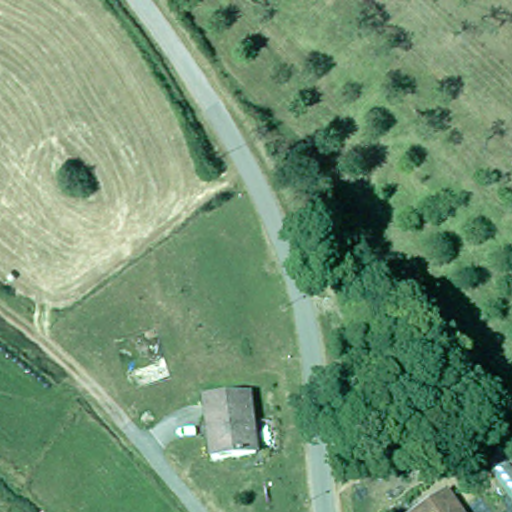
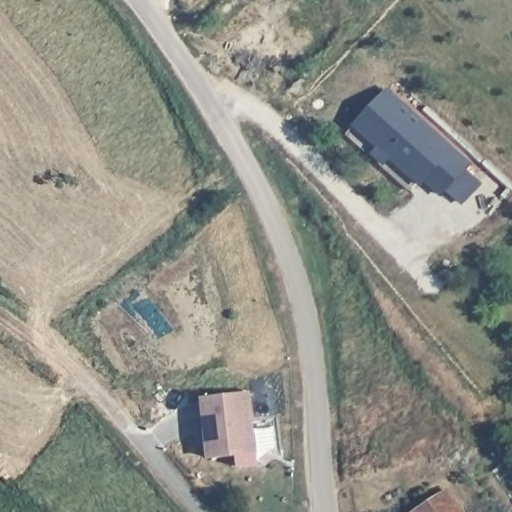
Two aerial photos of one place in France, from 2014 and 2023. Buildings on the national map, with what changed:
new [(463,204),(448,190),(444,196),(427,181),(423,186),(391,159),(386,165),(375,156),(381,150),(370,140),(356,127),(387,92),(401,104),(471,165),(466,170),(480,182),(463,204)]
unchanged [(197,393),(241,384),(255,445),(210,454),(197,393)]
unchanged [(439,487),(455,512),(402,512),(439,487)]

